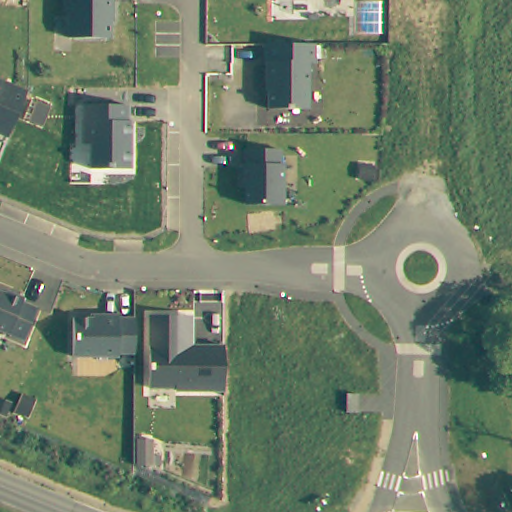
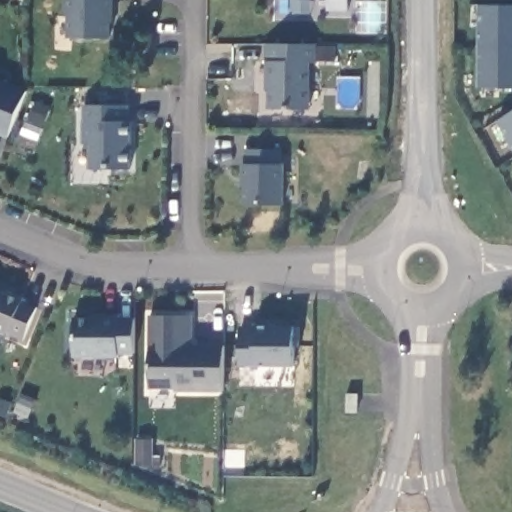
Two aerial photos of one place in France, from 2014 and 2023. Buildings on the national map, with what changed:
unchanged [(70,13),(65,14),(65,0),(113,0),(112,24),(110,24),(110,37),(69,38),(70,13)]
new [(479,4),(512,4),(512,47),(478,47),(479,4)]
unchanged [(266,109),(264,45),(315,44),(316,63),(310,64),(310,109),(266,109)]
new [(478,47),(512,47),(512,86),(478,86),(478,47)]
unchanged [(0,134),(0,80),(26,91),(7,137),(0,134)]
unchanged [(89,169),(89,145),(82,145),(83,107),(127,106),(127,120),(131,120),(130,170),(89,169)]
new [(512,112),(512,145),(497,120),(512,112)]
unchanged [(245,150),(280,150),(280,163),(285,164),(283,204),(244,204),(245,150)]
unchanged [(0,330),(0,291),(24,300),(22,303),(38,309),(24,340),(0,330)]
unchanged [(90,319),(90,314),(120,314),(120,317),(135,318),(135,356),(119,355),(118,358),(72,358),(73,319),(90,319)]
unchanged [(224,392),(175,391),(175,388),(149,388),(148,315),(192,315),(193,345),(224,345),(224,392)]
new [(238,329),(253,329),(253,321),(271,322),(271,324),(298,324),(298,344),(293,344),(292,364),(238,364),(238,329)]
new [(348,395),(359,396),(358,415),(348,415),(348,395)]

